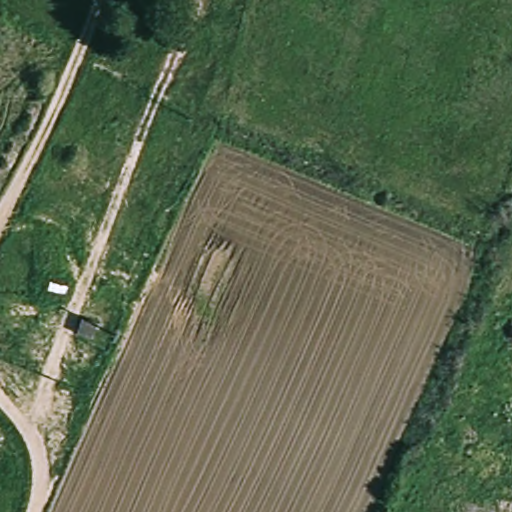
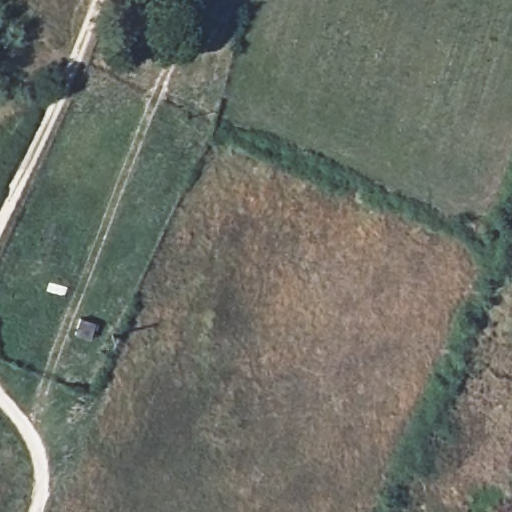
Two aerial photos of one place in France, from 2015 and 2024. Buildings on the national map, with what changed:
unchanged [(80,317),(96,322),(90,339),(73,336),(80,317)]

